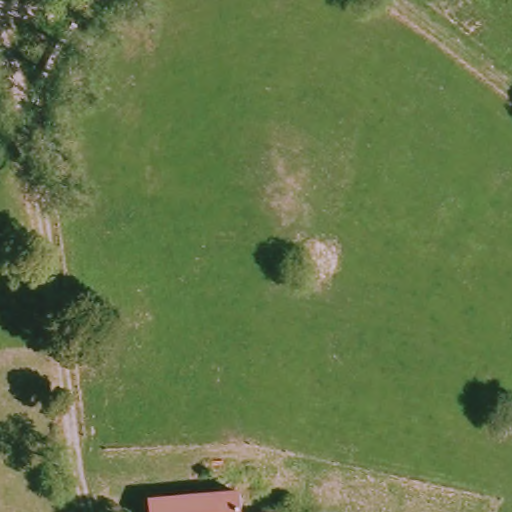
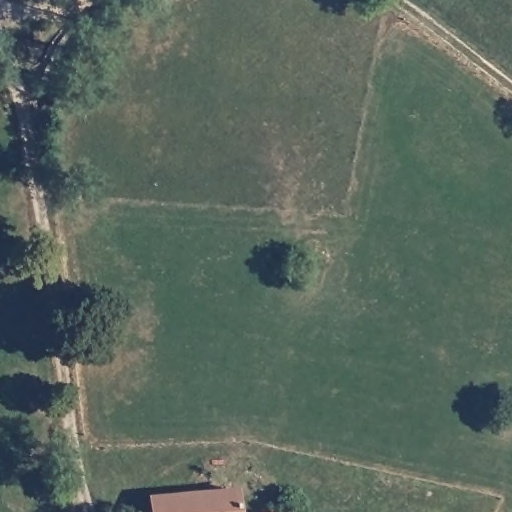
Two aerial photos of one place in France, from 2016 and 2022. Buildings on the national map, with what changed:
unchanged [(234,488),(235,512),(156,512),(154,496),(234,488)]
unchanged [(270,512),(286,511),(286,512),(270,512)]

